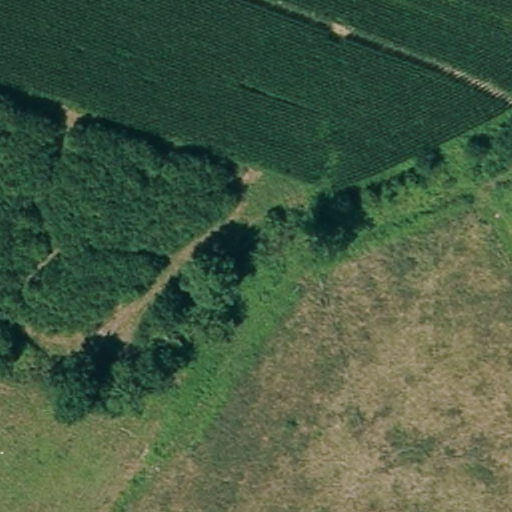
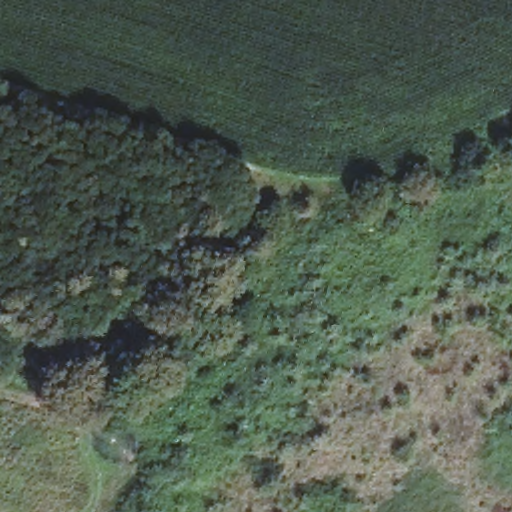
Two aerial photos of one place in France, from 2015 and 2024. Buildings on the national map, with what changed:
[]

